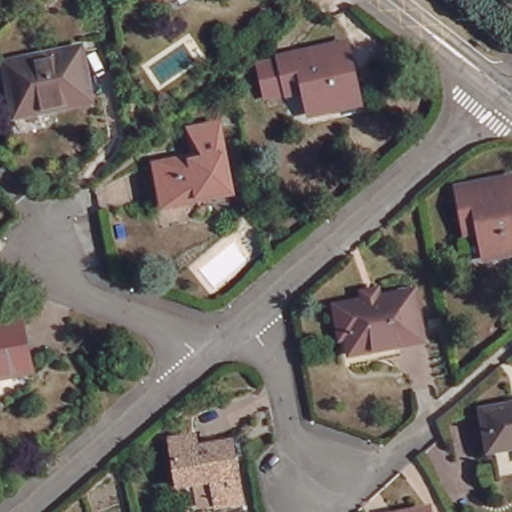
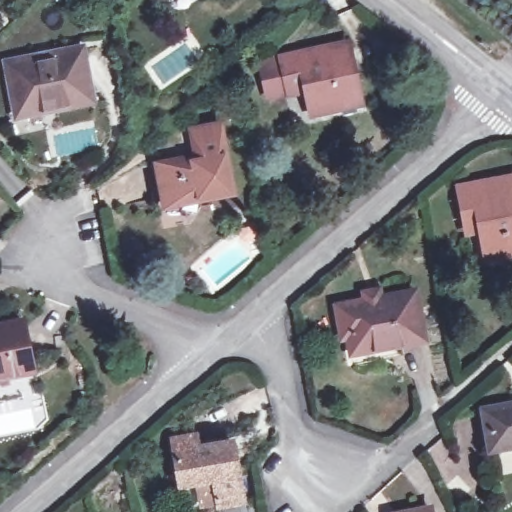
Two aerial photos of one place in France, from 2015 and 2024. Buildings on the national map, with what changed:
unchanged [(335,45),(347,103),(300,114),(295,87),(278,91),(271,59),(335,45)]
unchanged [(80,50),(90,100),(17,114),(7,64),(80,50)]
unchanged [(168,193),(162,160),(202,151),(197,125),(222,119),(237,189),(204,195),(170,201),(168,193)]
unchanged [(512,179),(512,255),(486,260),(480,231),(466,234),(458,189),(512,179)]
unchanged [(345,326),(340,305),(370,300),(370,293),(381,291),(381,297),(419,290),(428,340),(376,350),(378,360),(352,365),(350,355),(360,352),(356,335),(347,337),(345,326)]
unchanged [(32,370),(0,377),(0,325),(22,321),(32,370)]
unchanged [(488,449),(480,409),(512,404),(512,444),(488,449)]
unchanged [(202,511),(198,485),(184,488),(176,444),(198,440),(200,452),(236,445),(246,505),(221,510),(221,507),(202,511)]
unchanged [(430,507),(430,512),(407,512),(430,507)]

